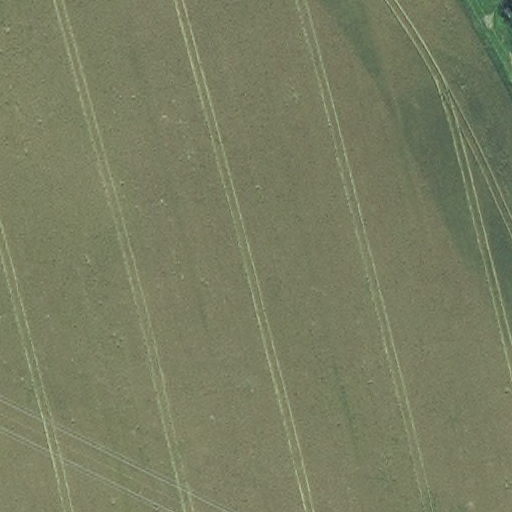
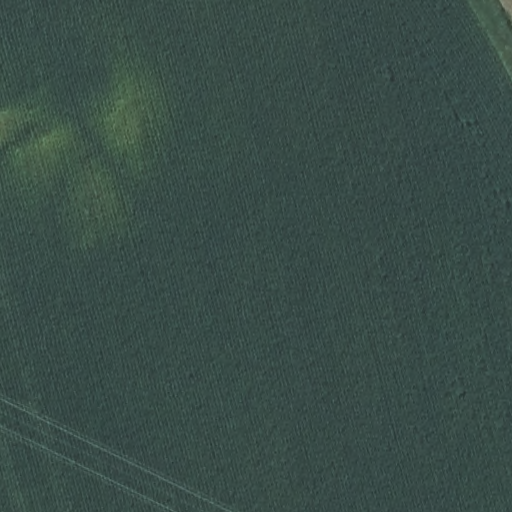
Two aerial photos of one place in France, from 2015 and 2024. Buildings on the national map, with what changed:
[]

